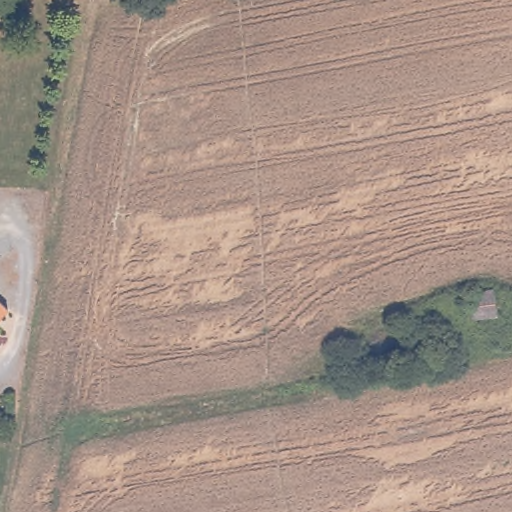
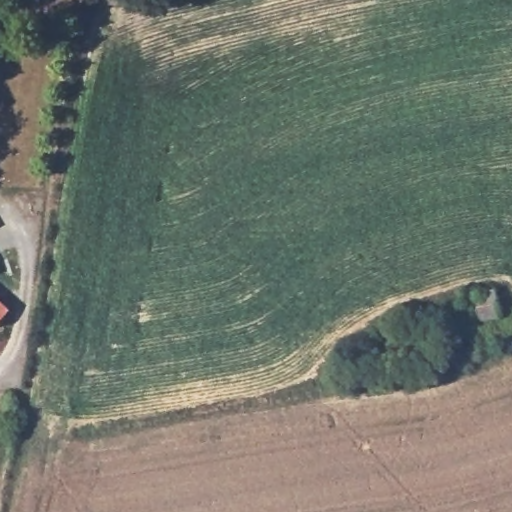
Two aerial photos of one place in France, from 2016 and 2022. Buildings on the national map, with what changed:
unchanged [(497,293),(501,315),(478,320),(474,298),(497,293)]
unchanged [(0,323),(0,302),(10,312),(0,323)]

